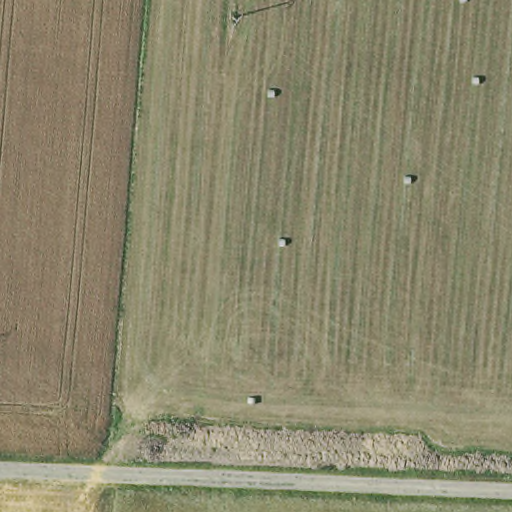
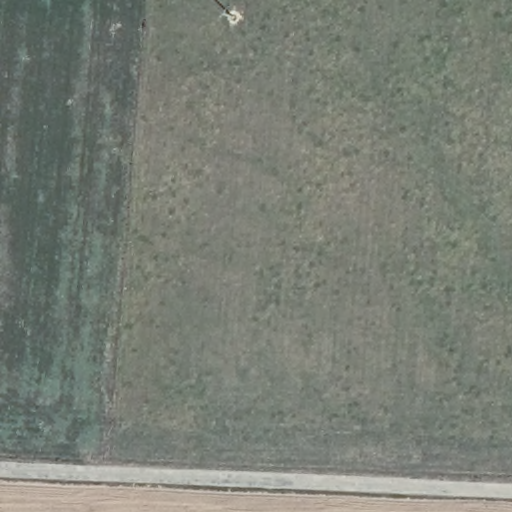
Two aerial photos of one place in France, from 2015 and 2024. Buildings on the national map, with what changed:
[]

